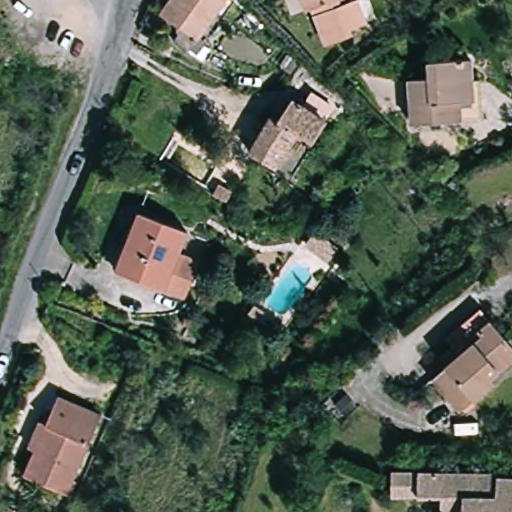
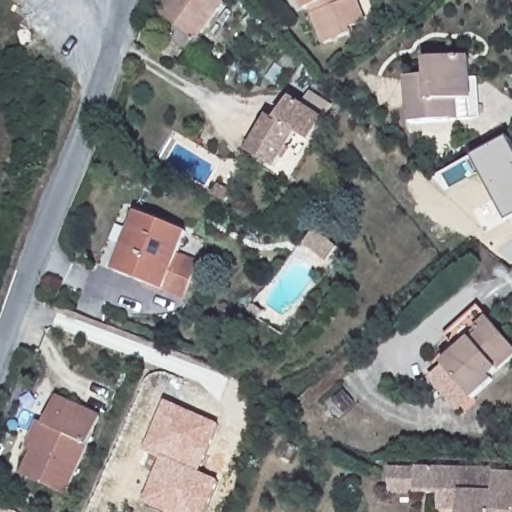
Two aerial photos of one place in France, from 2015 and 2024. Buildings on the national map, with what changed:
unchanged [(187,51),(174,42),(183,29),(162,15),(173,0),(223,0),(187,51)]
unchanged [(362,7),(366,16),(351,23),(354,29),(339,35),(326,41),(312,8),(306,10),(302,0),(360,0),(362,7)]
unchanged [(457,119),(416,123),(412,77),(431,76),(430,58),(471,55),(475,99),(476,118),(457,119)]
unchanged [(276,165),(251,151),(271,118),(278,122),(291,100),(322,118),(309,140),(295,132),(276,165)]
new [(501,211),(473,158),(509,139),(512,143),(512,218),(511,218),(506,208),(501,211)]
unchanged [(211,193),(216,183),(232,192),(227,201),(211,193)]
unchanged [(188,227),(179,251),(199,259),(185,296),(117,270),(110,268),(125,226),(131,228),(138,208),(188,227)]
unchanged [(337,249),(326,262),(304,244),(314,231),(337,249)]
unchanged [(253,305),(264,313),(258,322),(246,313),(253,305)]
unchanged [(450,368),(443,359),(460,345),(452,336),(486,308),(512,338),(512,365),(496,378),(500,382),(478,400),(463,413),(436,380),(450,368)]
unchanged [(66,495),(23,476),(33,451),(25,448),(37,421),(45,425),(56,397),(99,415),(66,495)]
new [(167,402),(218,425),(198,472),(216,480),(203,512),(166,512),(143,502),(162,460),(145,451),(167,402)]
unchanged [(416,496),(389,496),(390,470),(417,471),(498,470),(497,474),(512,474),(512,512),(440,512),(440,496),(416,496)]

